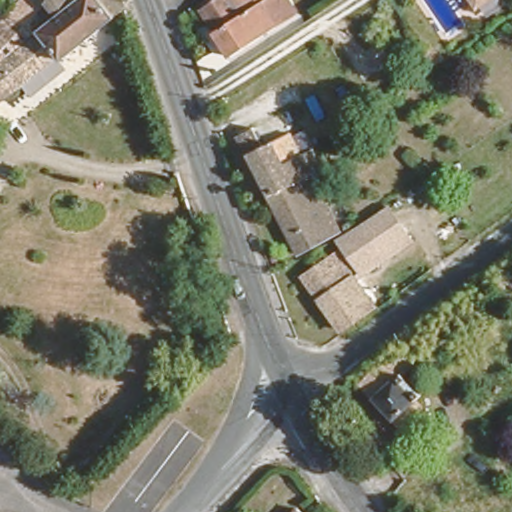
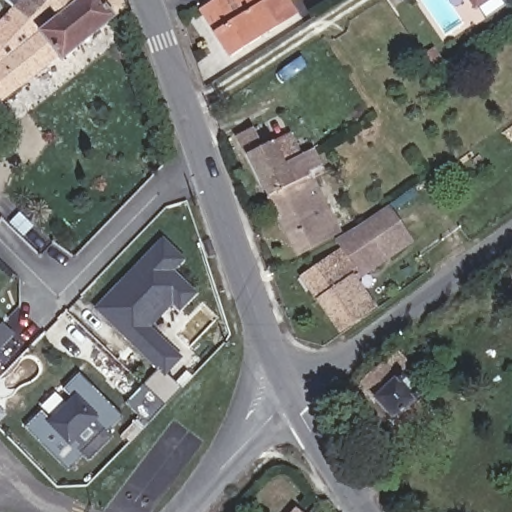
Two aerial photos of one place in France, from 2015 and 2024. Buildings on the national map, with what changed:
unchanged [(0,105),(0,27),(21,7),(34,19),(54,0),(121,0),(124,8),(62,59),(58,55),(0,105)]
unchanged [(21,7),(14,0),(31,0),(54,0),(34,19),(21,7)]
unchanged [(207,0),(294,0),(298,6),(232,49),(200,4),(207,0)]
unchanged [(292,167),(297,177),(268,193),(241,134),(267,120),(276,139),(294,130),(305,150),(289,160),(292,167)]
unchanged [(324,160),(311,168),(335,222),(293,246),(268,193),(297,177),(292,167),(289,160),(305,150),(315,143),(324,160)]
unchanged [(370,302),(336,325),(304,274),(336,252),(334,248),(340,244),(334,233),(358,217),(365,227),(389,210),(409,238),(386,255),(355,278),(370,302)]
new [(175,363),(160,379),(101,321),(95,315),(109,300),(159,247),(178,265),(166,277),(190,299),(177,313),(169,306),(144,333),(175,363)]
unchanged [(509,275),(496,274),(486,262),(500,250),(512,264),(512,272),(509,275)]
new [(14,338),(0,353),(0,329),(2,327),(14,338)]
unchanged [(408,441),(357,382),(379,358),(393,344),(409,364),(402,373),(421,394),(416,399),(433,418),(408,441)]
new [(179,391),(163,408),(148,393),(164,376),(179,391)]
new [(109,437),(89,458),(83,453),(68,468),(28,429),(42,414),(54,426),(75,404),(63,392),(78,377),(119,416),(104,431),(109,437)]
unchanged [(294,504),(304,512),(287,512),(294,504)]

